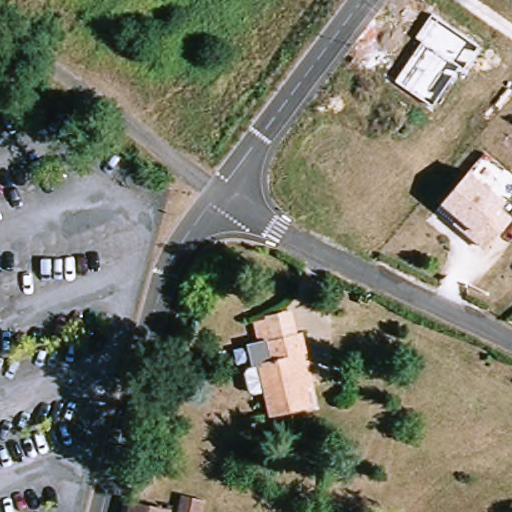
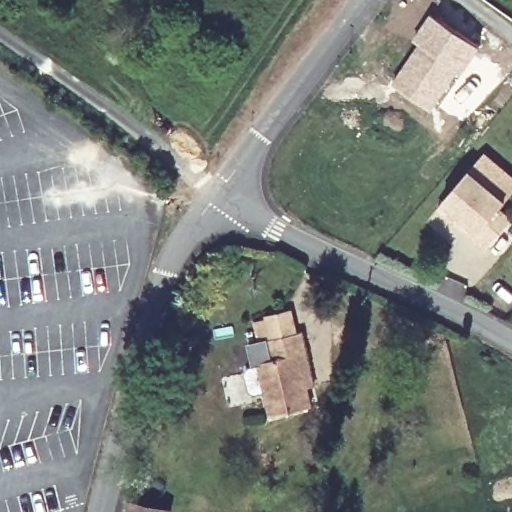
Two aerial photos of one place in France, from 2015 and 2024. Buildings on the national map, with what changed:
new [(393,82),(419,42),(414,38),(431,13),(480,46),(464,73),(459,69),(432,109),(393,82)]
new [(512,175),(512,195),(509,198),(476,170),(472,174),(469,170),(485,152),(512,175)]
unchanged [(450,200),(476,170),(512,201),(506,208),(512,213),(512,225),(492,248),(479,236),(444,206),(450,200)]
unchanged [(272,416),(262,362),(257,340),(274,337),(270,315),(288,311),(292,334),(308,331),(312,355),(321,407),(312,408),(272,416)]
unchanged [(137,512),(139,505),(167,512),(137,512)]

